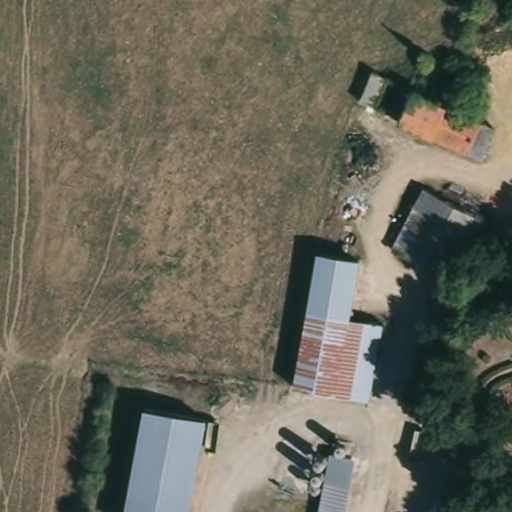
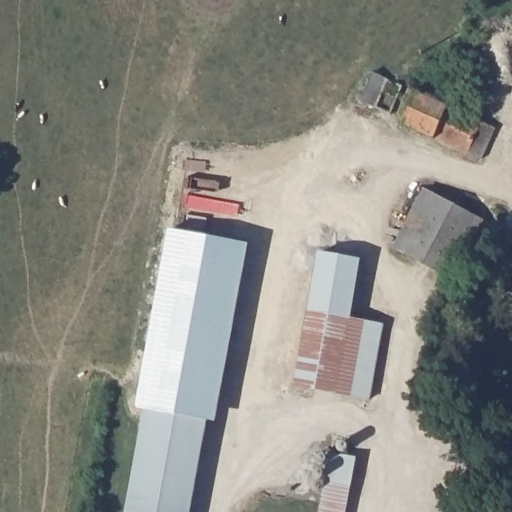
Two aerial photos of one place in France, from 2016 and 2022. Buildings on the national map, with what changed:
unchanged [(391,118),(373,110),(355,102),(368,73),(385,80),(403,88),(391,118)]
unchanged [(485,124),(488,117),(500,123),(483,161),(400,125),(415,93),(431,101),(436,90),(450,96),(446,107),(485,124)]
unchanged [(460,283),(398,256),(426,195),(487,222),(460,283)]
new [(250,244),(217,422),(207,419),(147,408),(139,407),(170,229),(250,244)]
unchanged [(365,255),(351,320),(386,327),(370,403),(330,395),(295,388),(325,247),(348,252),(365,255)]
unchanged [(126,512),(147,408),(207,419),(188,512),(126,512)]
unchanged [(320,512),(333,445),(355,450),(361,451),(348,512),(320,512)]

